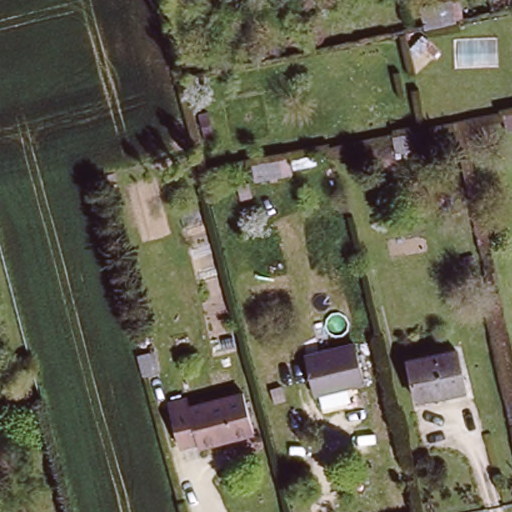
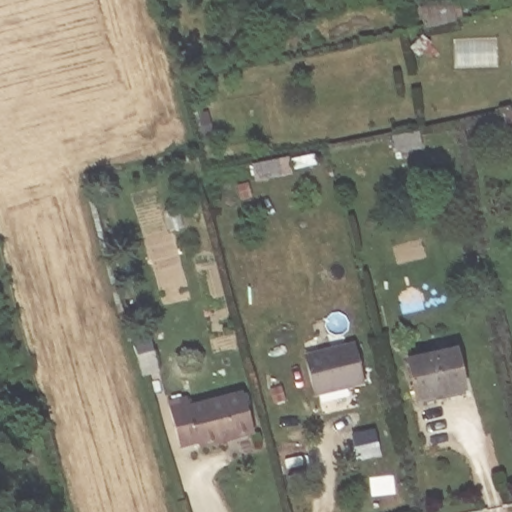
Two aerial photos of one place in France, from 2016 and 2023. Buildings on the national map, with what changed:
unchanged [(464,18),(457,20),(425,27),(421,7),(450,0),(459,0),(464,18)]
unchanged [(512,107),(512,119),(510,107),(512,107)]
unchanged [(419,130),(423,145),(398,151),(394,136),(419,130)]
unchanged [(278,159),(280,175),(255,181),(251,165),(278,159)]
unchanged [(298,356),(351,345),(358,392),(308,400),(298,356)]
unchanged [(455,350),(465,387),(436,394),(437,402),(417,406),(407,362),(455,350)]
unchanged [(154,351),(161,373),(141,378),(135,356),(154,351)]
unchanged [(241,395),(250,433),(199,446),(197,440),(180,444),(169,405),(186,400),(189,407),(241,395)]

